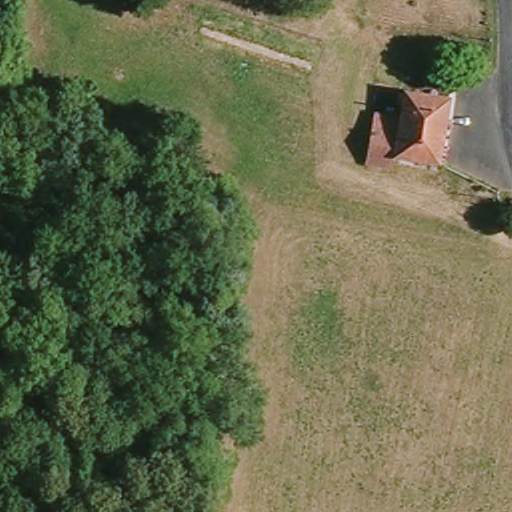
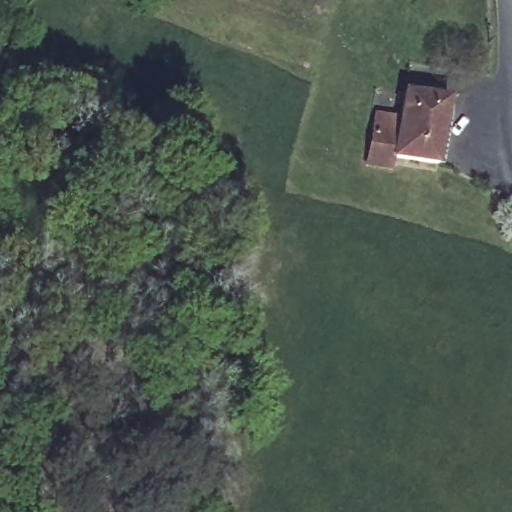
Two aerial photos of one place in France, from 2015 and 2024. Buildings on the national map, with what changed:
unchanged [(400,133),(404,109),(399,109),(399,96),(406,97),(451,105),(439,169),(389,159),(371,156),(372,152),(374,141),(376,129),(400,133)]

